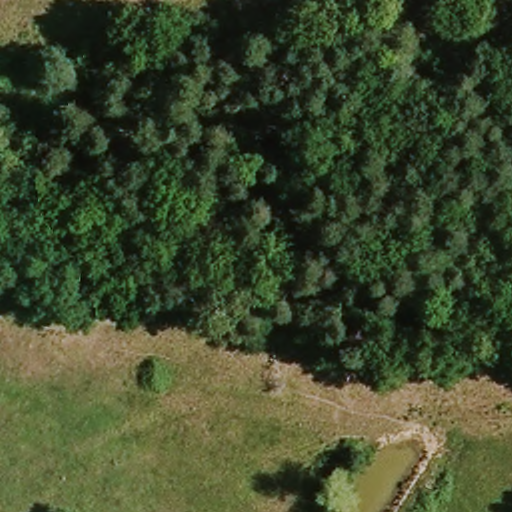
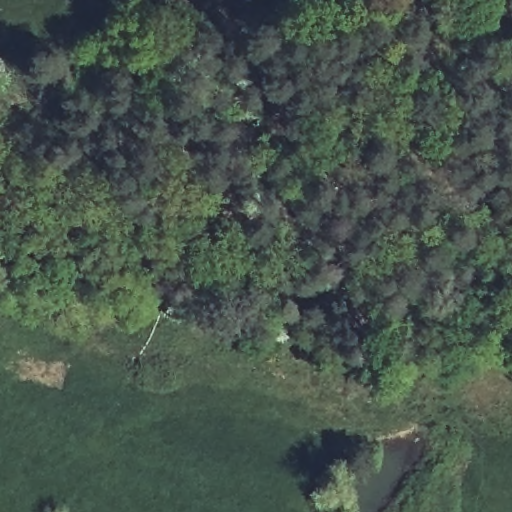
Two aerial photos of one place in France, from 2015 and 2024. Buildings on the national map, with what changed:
[]

